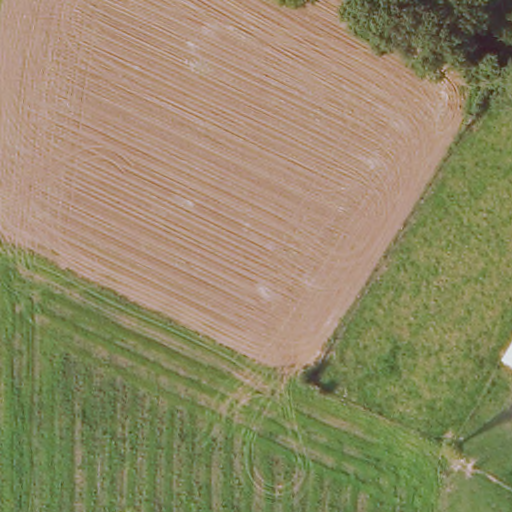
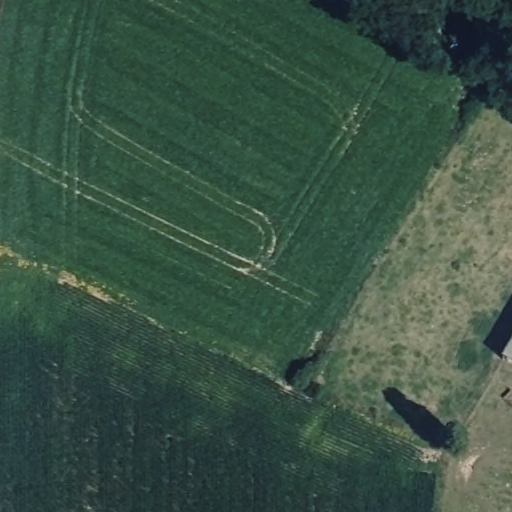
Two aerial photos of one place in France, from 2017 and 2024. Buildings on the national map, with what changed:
unchanged [(512,367),(502,361),(512,346),(512,367)]

